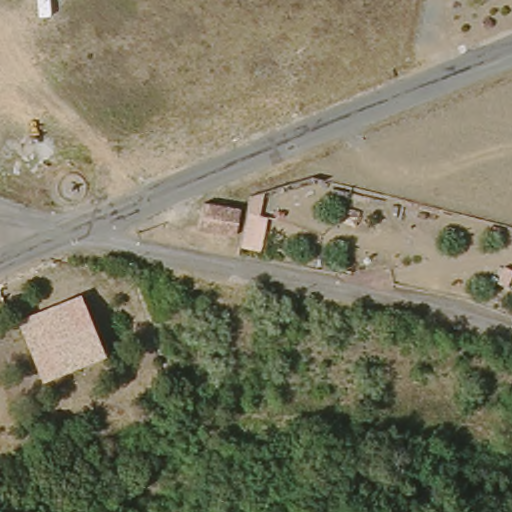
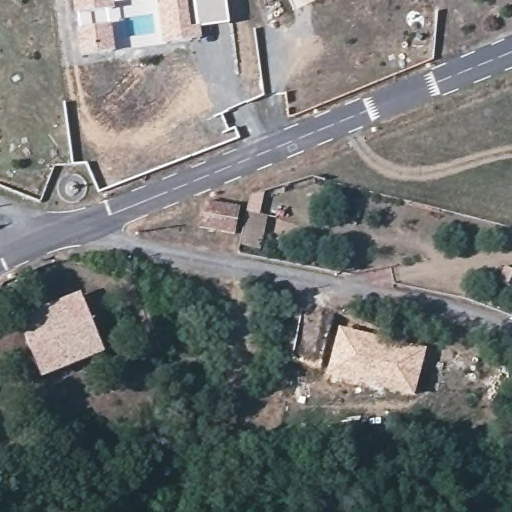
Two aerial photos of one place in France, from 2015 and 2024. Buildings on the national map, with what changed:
new [(115,10),(75,15),(73,0),(114,0),(115,10)]
new [(229,25),(199,28),(201,39),(162,44),(156,0),(226,0),(229,25)]
unchanged [(206,196),(228,198),(241,200),(238,224),(203,219),(206,196)]
unchanged [(84,293),(106,352),(46,378),(22,316),(84,293)]
new [(339,325),(427,347),(414,396),(325,376),(339,325)]

